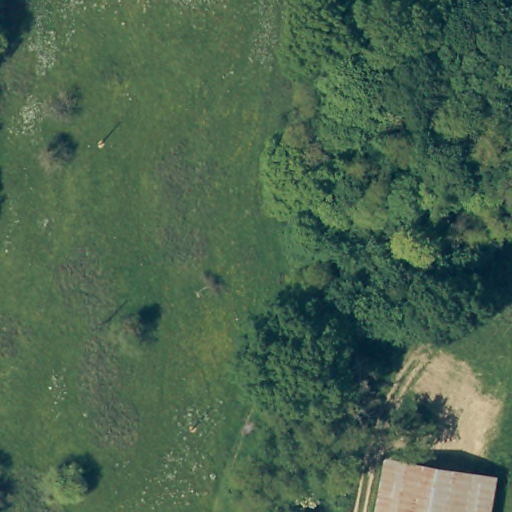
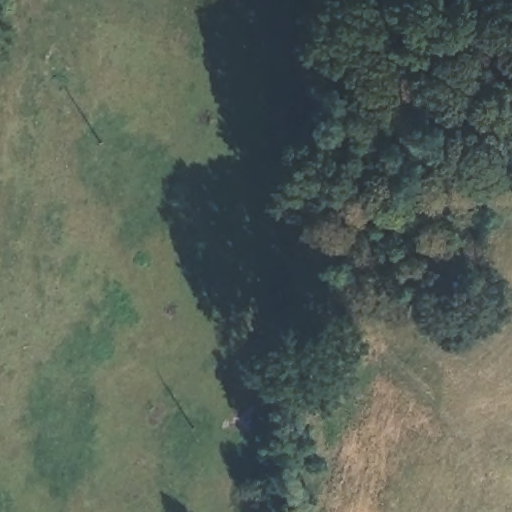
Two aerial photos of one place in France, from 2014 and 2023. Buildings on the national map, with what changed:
demolished [(390,459),(473,472),(467,512),(381,512),(390,459)]
demolished [(473,472),(505,478),(499,512),(467,512),(473,472)]

